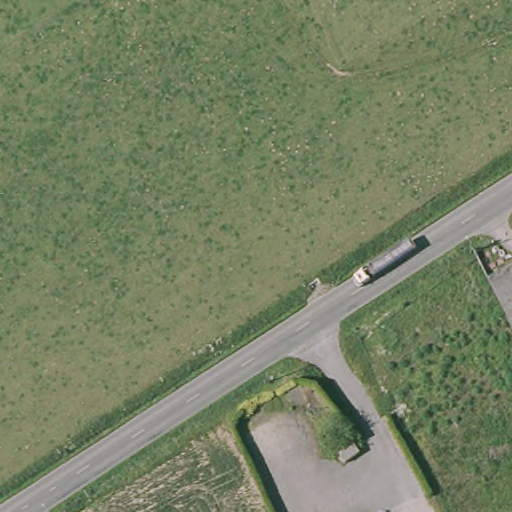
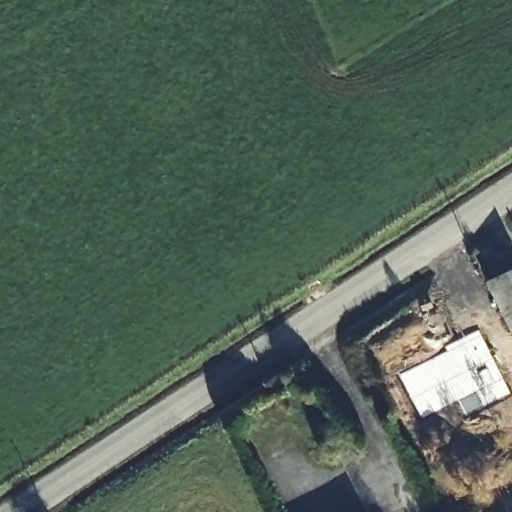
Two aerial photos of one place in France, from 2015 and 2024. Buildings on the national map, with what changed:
unchanged [(512,271),(512,335),(511,335),(484,283),(512,271)]
new [(511,393),(466,414),(459,399),(422,418),(399,375),(448,352),(446,347),(479,329),(511,393)]

